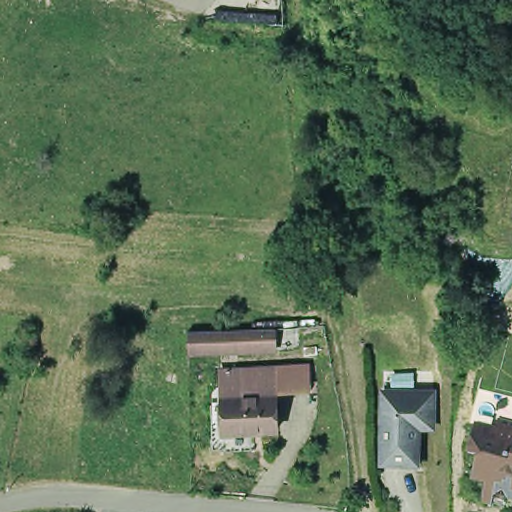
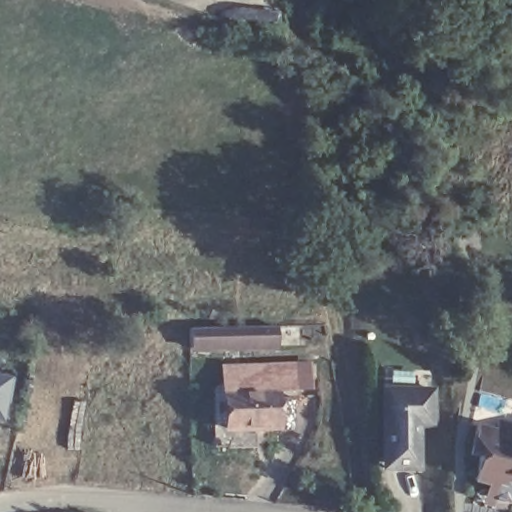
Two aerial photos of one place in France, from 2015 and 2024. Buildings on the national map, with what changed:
unchanged [(193,339),(258,338),(267,337),(282,336),(283,354),(267,355),(259,355),(193,356),(193,339)]
new [(14,376),(0,424),(0,373),(14,376)]
unchanged [(217,378),(254,377),(265,376),(300,376),(300,399),(266,400),(267,438),(257,438),(220,440),(218,402),(217,378)]
unchanged [(430,392),(430,425),(415,425),(415,460),(382,460),(381,393),(430,392)]
unchanged [(492,477),(477,473),(483,450),(472,447),(479,420),(499,425),(501,416),(512,419),(512,493),(500,490),(498,500),(486,497),(492,477)]

